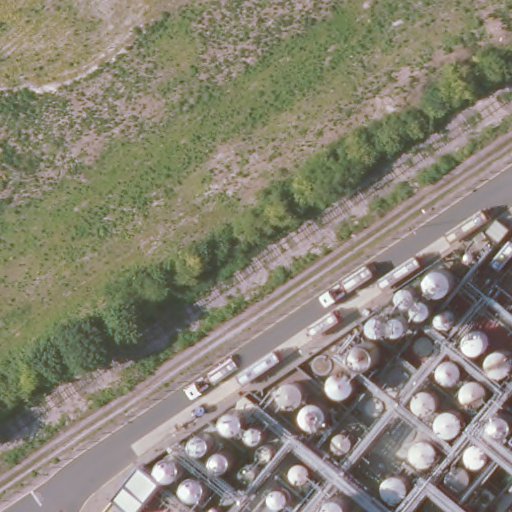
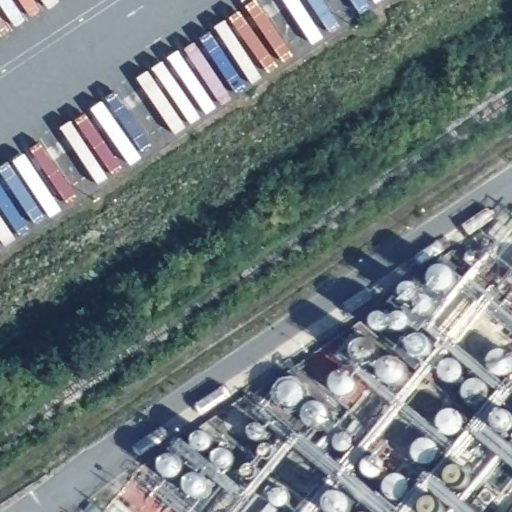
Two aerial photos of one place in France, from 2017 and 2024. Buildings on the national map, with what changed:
unchanged [(156,460),(163,465),(175,475),(159,493),(151,502),(142,512),(111,512),(128,493),(156,460)]
unchanged [(419,512),(410,512),(414,507),(419,512)]

